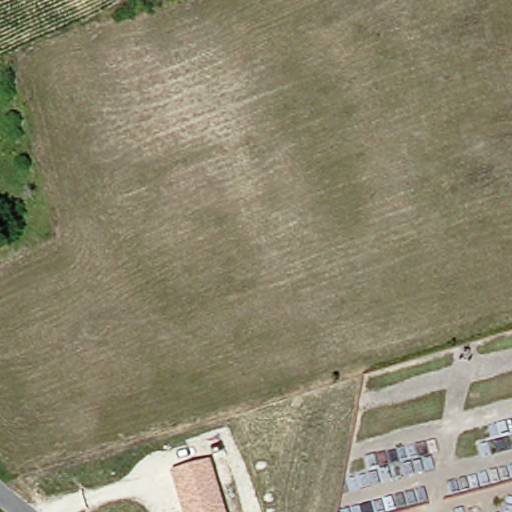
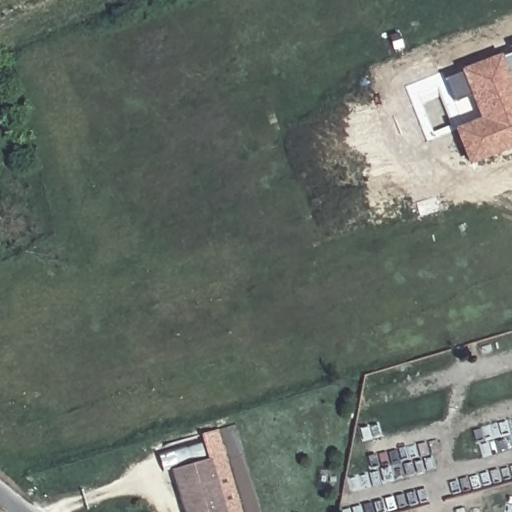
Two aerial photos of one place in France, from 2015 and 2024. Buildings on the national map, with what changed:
new [(512,45),(512,52),(510,46),(512,45)]
new [(478,118),(469,96),(452,102),(443,79),(460,72),(459,69),(500,54),(501,57),(512,53),(512,148),(467,165),(452,127),(478,118)]
unchanged [(211,458),(228,512),(182,512),(170,469),(211,458)]

